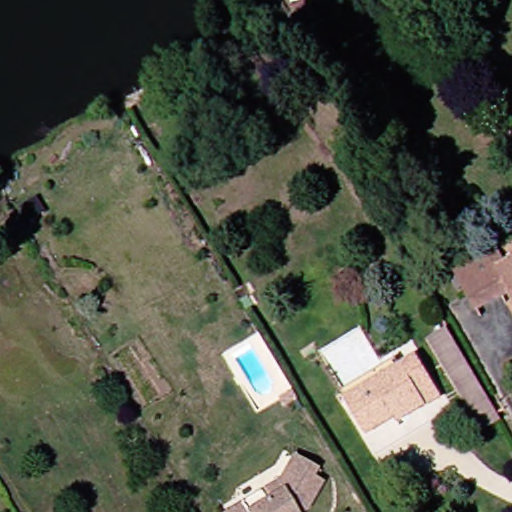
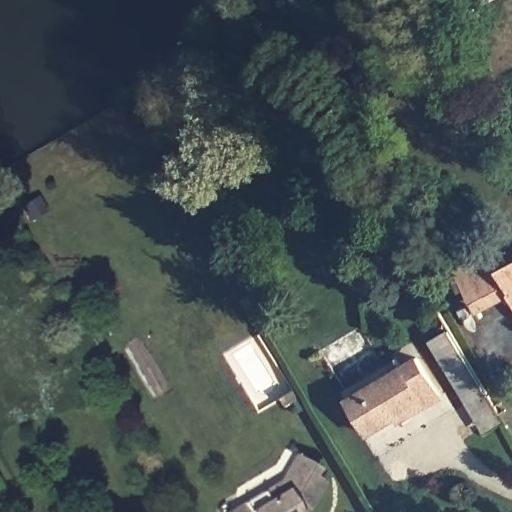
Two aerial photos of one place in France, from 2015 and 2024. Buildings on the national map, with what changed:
unchanged [(219,81),(208,88),(201,77),(211,70),(219,81)]
unchanged [(464,293),(456,277),(463,274),(505,252),(512,266),(512,301),(485,316),(479,306),(471,290),(464,293)]
unchanged [(452,325),(505,420),(485,431),(429,338),(452,325)]
unchanged [(399,412),(372,431),(350,397),(419,355),(442,393),(426,403),(403,418),(399,412)]
unchanged [(279,480),(295,452),(319,467),(314,475),(324,480),(307,508),(303,512),(224,512),(279,480)]

